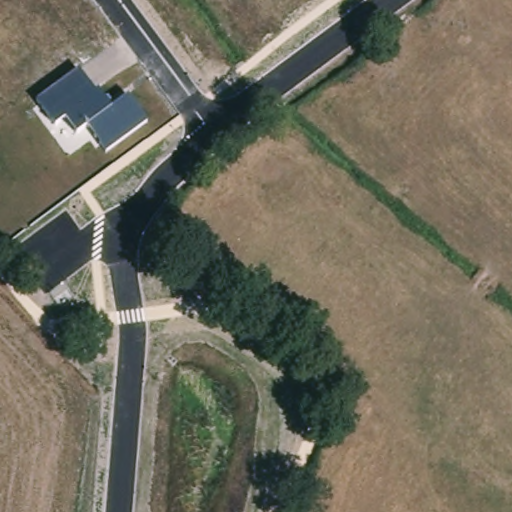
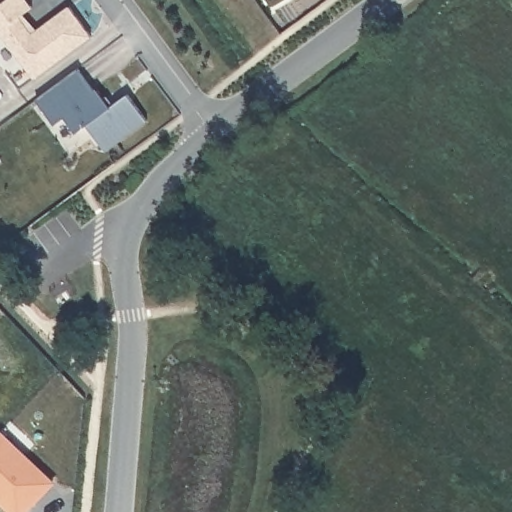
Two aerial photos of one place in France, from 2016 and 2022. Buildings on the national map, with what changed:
new [(25,0),(26,1),(13,11),(26,28),(61,0),(63,0),(85,29),(29,72),(0,34),(0,0),(25,0)]
unchanged [(88,126),(76,133),(66,117),(54,126),(36,100),(79,71),(94,92),(97,90),(110,109),(128,96),(146,123),(106,152),(88,126)]
new [(53,482),(24,512),(13,512),(0,500),(0,496),(1,495),(0,495),(0,433),(53,482)]

